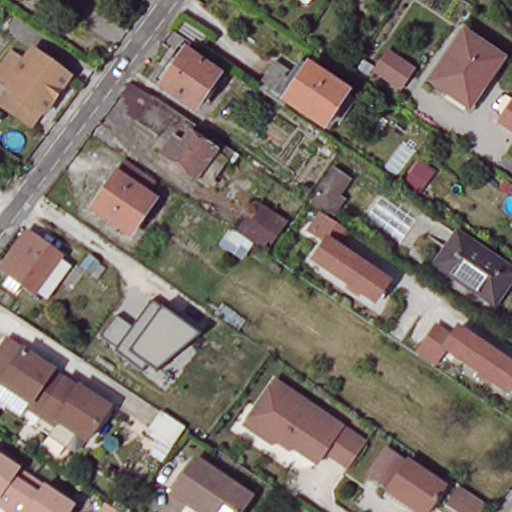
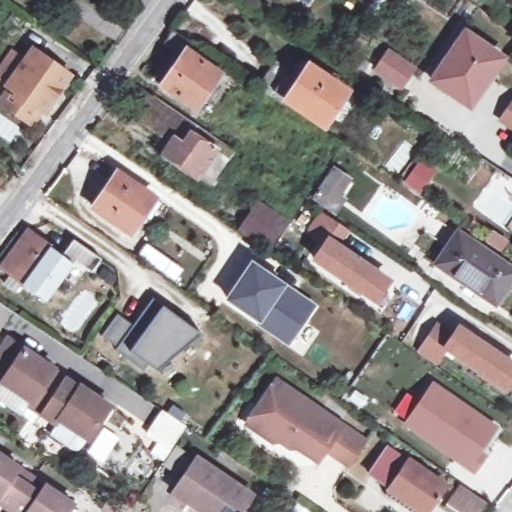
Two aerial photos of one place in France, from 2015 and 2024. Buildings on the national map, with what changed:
unchanged [(181,35),(206,52),(198,62),(224,80),(202,112),(169,90),(164,85),(183,56),(172,48),(181,35)]
unchanged [(469,110),(433,85),(466,37),(503,62),(469,110)]
unchanged [(407,95),(379,75),(375,72),(390,49),(424,69),(407,95)]
unchanged [(369,75),(366,72),(359,68),(365,59),(376,66),(369,75)]
unchanged [(4,114),(13,100),(10,98),(12,95),(1,87),(16,65),(28,72),(36,60),(74,86),(49,124),(40,137),(4,114)]
unchanged [(301,110),(274,91),(293,65),(319,82),(326,71),(360,95),(337,127),(304,105),(301,110)]
unchanged [(201,182),(167,160),(170,156),(160,150),(166,141),(141,124),(132,117),(136,111),(128,106),(131,104),(125,100),(137,84),(158,99),(244,157),(238,167),(235,165),(216,193),(201,182)]
unchanged [(0,89),(1,90),(0,91),(0,89)]
new [(500,124),(512,106),(512,132),(500,124)]
unchanged [(143,225),(131,243),(94,217),(126,170),(156,190),(148,203),(149,205),(155,209),(143,225)]
unchanged [(319,207),(330,191),(344,201),(343,204),(349,207),(339,220),(319,207)]
unchanged [(261,199),(293,220),(273,250),(258,241),(241,229),(261,199)]
unchanged [(342,254),(392,287),(379,307),(320,267),(333,249),(316,237),(329,220),(353,237),(342,254)]
unchanged [(74,245),(63,236),(71,225),(83,234),(74,245)]
unchanged [(8,281),(14,273),(6,266),(33,231),(66,257),(77,265),(52,297),(41,290),(39,292),(26,282),(20,290),(8,281)]
unchanged [(494,303),(437,262),(458,233),(512,270),(512,277),(494,303)]
new [(251,261),(286,285),(317,306),(289,345),(259,323),(224,299),(251,261)]
unchanged [(163,310),(197,332),(158,370),(147,362),(143,369),(118,351),(119,346),(104,337),(117,318),(132,329),(153,302),(163,310)]
unchanged [(424,357),(443,330),(458,340),(464,331),(512,364),(512,385),(509,390),(452,352),(441,369),(424,357)]
unchanged [(65,420),(36,401),(31,410),(0,389),(0,361),(18,335),(62,365),(61,366),(88,385),(90,382),(118,401),(96,433),(89,442),(62,424),(65,420)]
unchanged [(367,442),(358,455),(351,465),(326,449),(318,461),(286,440),(273,441),(246,423),(276,379),(367,442)]
new [(434,382),(498,429),(482,452),(488,457),(474,475),(404,425),(434,382)]
unchanged [(151,451),(160,437),(151,431),(161,418),(182,432),(176,442),(173,446),(163,460),(151,451)]
unchanged [(393,496),(396,491),(397,490),(375,475),(394,447),(449,486),(432,512),(427,512),(425,511),(424,512),(415,512),(393,496)]
unchanged [(50,485),(80,504),(75,512),(10,512),(0,506),(0,499),(0,451),(25,468),(50,485)]
unchanged [(176,496),(198,463),(255,501),(248,512),(199,512),(176,496)]
unchanged [(451,505),(463,485),(489,505),(485,512),(462,512),(451,505)]
unchanged [(101,506),(105,500),(122,512),(109,512),(101,506)]

